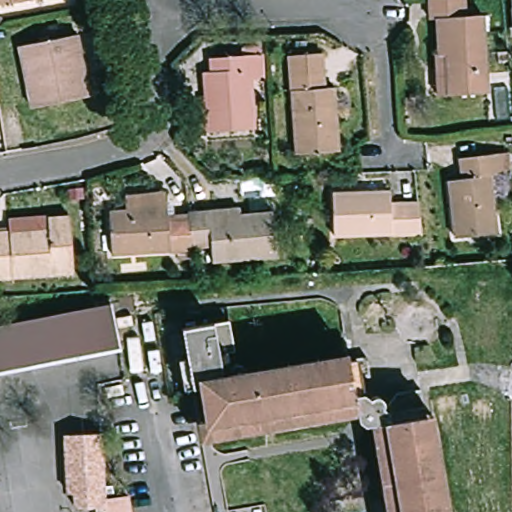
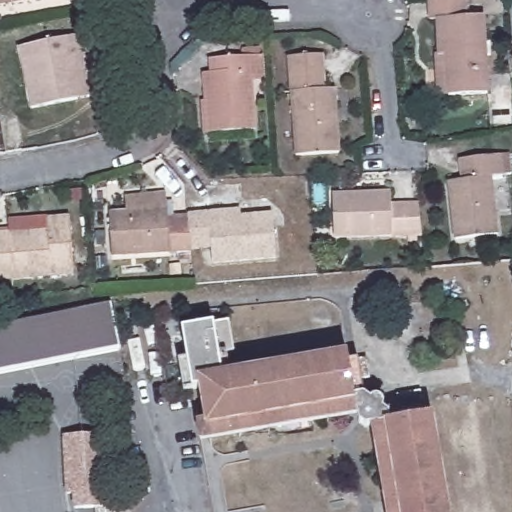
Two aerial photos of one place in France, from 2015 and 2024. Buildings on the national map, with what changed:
unchanged [(0,0),(32,0),(0,6),(0,0)]
unchanged [(448,58),(447,21),(439,21),(438,0),(474,0),(475,18),(493,17),(494,95),(455,96),(442,96),(441,58),(448,58)]
unchanged [(76,100),(30,109),(18,47),(77,36),(80,53),(88,98),(76,100)]
unchanged [(342,147),(300,150),(294,53),(326,51),(327,69),(328,84),(338,84),(342,147)]
unchanged [(201,101),(206,101),(205,73),(213,72),(212,59),(248,56),(262,56),(264,80),(251,81),(254,131),(209,134),(203,134),(201,101)]
unchanged [(502,179),(491,180),(497,237),(455,241),(450,185),(462,184),(460,163),(470,161),(500,159),(502,179)]
unchanged [(336,194),(395,193),(396,206),(423,206),(424,220),(426,237),(337,238),(336,194)]
unchanged [(170,218),(192,217),(193,223),(195,251),(114,258),(111,213),(128,212),(127,197),(168,195),(170,218)]
unchanged [(281,256),(216,262),(215,249),(195,251),(193,223),(192,217),(214,212),(242,210),(243,217),(277,214),(281,256)]
unchanged [(0,233),(13,233),(12,220),(51,217),(52,219),(72,218),(76,274),(0,280),(0,272),(0,233)]
unchanged [(120,313),(125,349),(0,373),(0,326),(118,303),(120,313)]
unchanged [(391,422),(378,424),(369,426),(362,423),(361,416),(358,400),(211,425),(204,387),(198,388),(190,389),(185,358),(193,357),(188,327),(233,319),(239,350),(234,351),(238,373),(352,354),(353,360),(359,359),(370,355),(373,375),(366,376),(370,393),(374,397),(376,395),(378,394),(380,393),(384,393),(387,394),(389,396),(390,400),(390,404),(390,407),(391,408),(404,391),(428,387),(431,407),(432,414),(437,413),(453,512),(406,512),(391,422)]
unchanged [(361,416),(205,442),(202,426),(211,425),(358,400),(361,416)]
unchanged [(376,501),(390,498),(378,425),(378,424),(391,422),(406,512),(378,512),(376,501)]
unchanged [(106,431),(110,498),(110,512),(99,512),(98,506),(79,507),(78,491),(73,491),(69,433),(106,431)]
unchanged [(136,512),(110,512),(110,498),(135,496),(136,512)]

